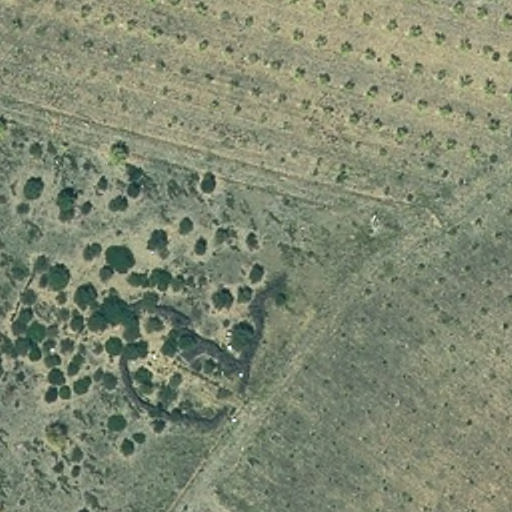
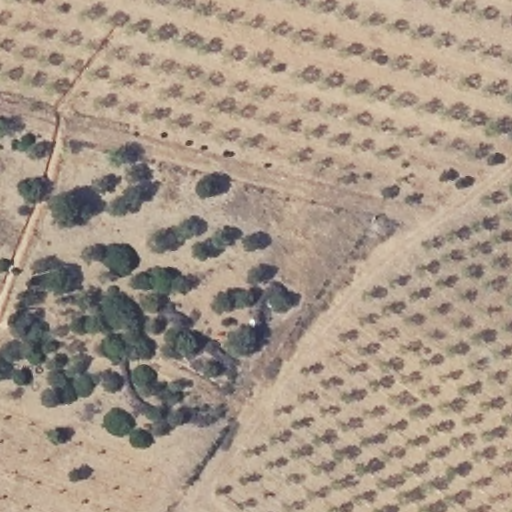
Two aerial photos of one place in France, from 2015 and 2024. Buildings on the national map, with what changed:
[]

